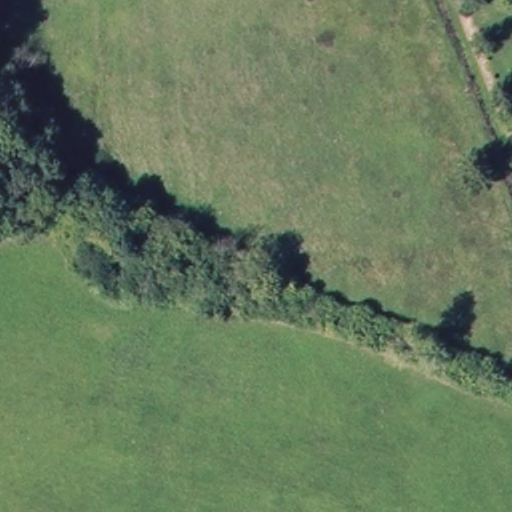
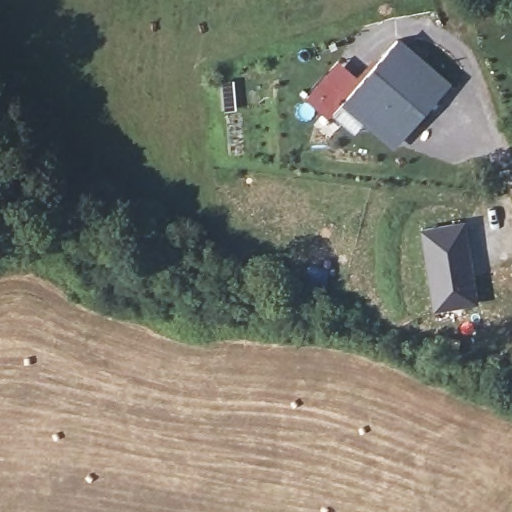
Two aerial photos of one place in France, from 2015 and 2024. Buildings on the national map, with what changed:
new [(433,72),(446,84),(423,111),(394,143),(345,99),(397,40),(433,72)]
new [(463,221),(470,268),(468,269),(469,276),(472,275),(476,301),(434,307),(422,227),(463,221)]

